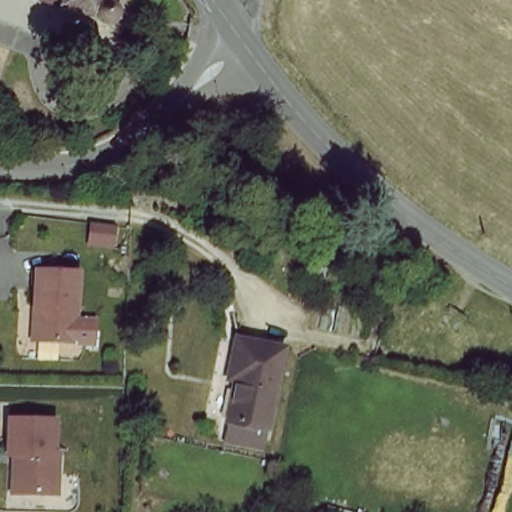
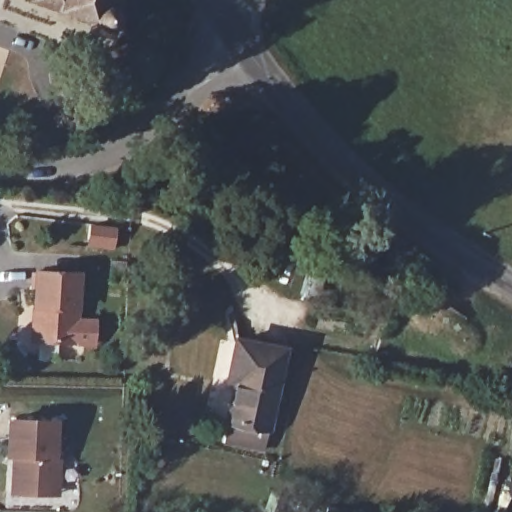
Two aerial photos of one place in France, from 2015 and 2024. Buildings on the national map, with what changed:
unchanged [(103,25),(101,30),(99,32),(96,34),(91,35),(87,34),(84,31),(82,27),(83,22),(84,18),(86,17),(38,0),(112,0),(104,23),(103,25)]
unchanged [(77,274),(69,338),(35,334),(39,303),(35,302),(39,270),(77,274)]
unchanged [(239,382),(229,381),(231,343),(277,346),(273,429),(236,428),(239,382)]
unchanged [(43,494),(8,490),(10,467),(17,464),(19,453),(10,452),(13,419),(55,424),(52,458),(56,458),(54,475),(52,495),(43,494)]

